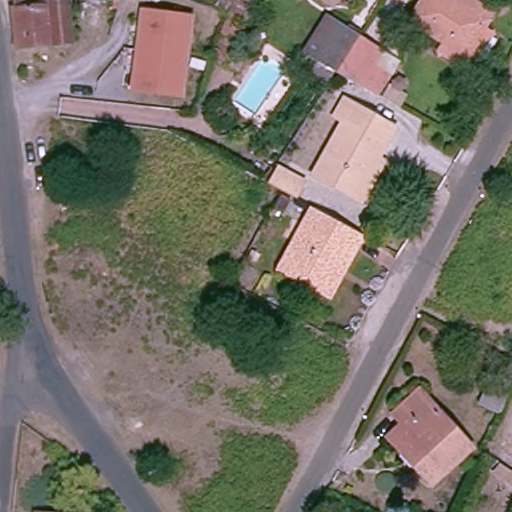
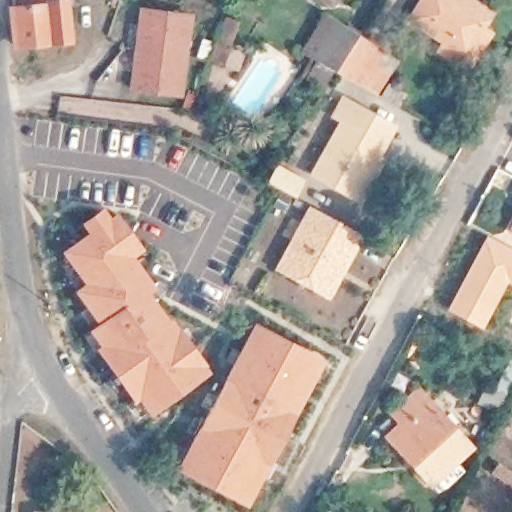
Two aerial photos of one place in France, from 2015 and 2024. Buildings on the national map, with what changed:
unchanged [(17,6),(16,0),(64,0),(64,1),(70,0),(73,40),(20,45),(17,6)]
unchanged [(416,0),(471,0),(483,8),(474,22),(480,26),(458,63),(430,46),(437,34),(405,15),(416,0)]
unchanged [(191,15),(182,91),(134,86),(142,10),(191,15)]
unchanged [(307,49),(330,14),(351,27),(329,60),(307,49)]
unchanged [(329,60),(351,27),(374,41),(367,52),(386,64),(374,86),(353,74),(329,60)]
unchanged [(354,189),(313,166),(338,122),(326,116),(337,96),(348,103),(385,122),(389,124),(380,142),(372,155),(379,159),(361,193),(354,189)]
unchanged [(275,165),(302,180),(294,194),(283,187),(266,179),(275,165)]
unchanged [(331,294),(289,270),(322,209),(372,235),(353,272),(339,298),(331,294)]
new [(149,416),(140,400),(134,404),(95,349),(100,346),(88,330),(96,325),(73,290),(83,284),(60,252),(88,231),(83,223),(102,210),(107,217),(116,212),(143,250),(133,257),(156,287),(147,292),(167,318),(172,318),(210,373),(149,416)]
new [(512,230),(511,229),(512,228),(512,230)]
new [(512,248),(512,285),(507,283),(483,330),(445,310),(486,234),(512,248)]
new [(325,359),(247,508),(175,469),(253,322),(325,359)]
unchanged [(491,384),(509,392),(503,407),(485,399),(491,384)]
unchanged [(402,435),(411,426),(403,415),(427,393),(474,445),(434,482),(423,468),(397,439),(402,435)]
unchanged [(504,466),(512,471),(512,490),(495,479),(504,466)]
unchanged [(46,503),(100,507),(100,512),(45,512),(46,503)]

